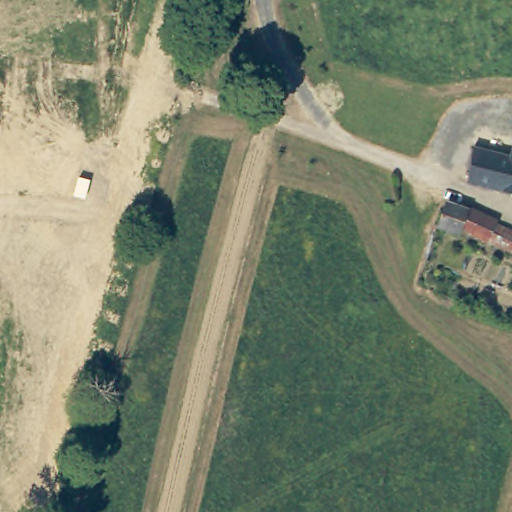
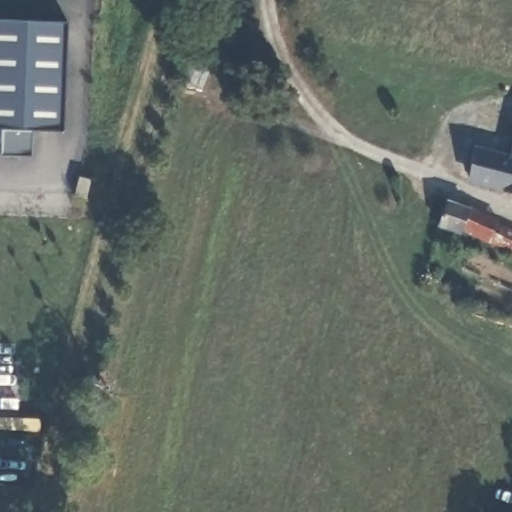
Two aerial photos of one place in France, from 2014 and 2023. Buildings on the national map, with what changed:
new [(63,130),(33,129),(30,156),(2,154),(2,129),(0,128),(0,19),(67,21),(63,130)]
unchanged [(487,190),(467,182),(471,146),(477,149),(510,158),(512,149),(512,195),(487,190)]
unchanged [(511,253),(486,239),(462,225),(459,230),(437,222),(445,199),(472,206),(497,218),(496,221),(512,229),(512,252),(511,253)]

